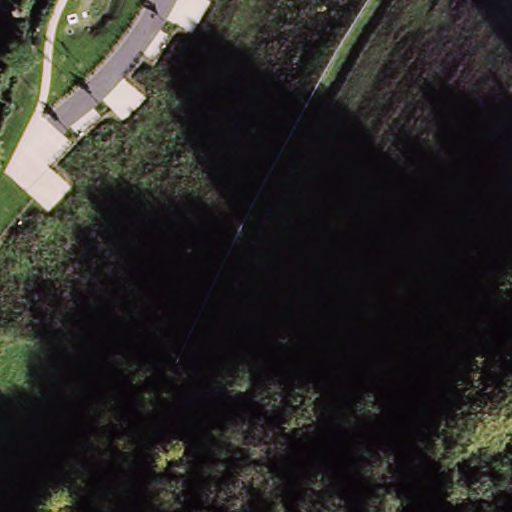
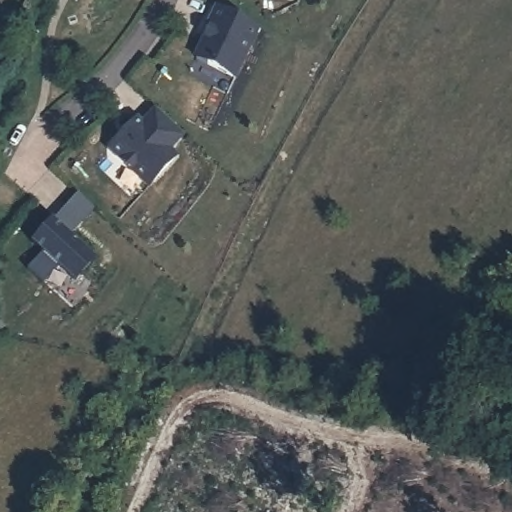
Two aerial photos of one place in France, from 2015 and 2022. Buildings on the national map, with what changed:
new [(215,25),(212,23),(220,7),(262,27),(238,78),(198,59),(215,25)]
new [(140,120),(145,125),(159,110),(186,135),(172,150),(180,156),(152,186),(116,154),(115,146),(137,123),(140,120)]
new [(55,220),(72,235),(98,259),(76,283),(33,244),(55,220)]

